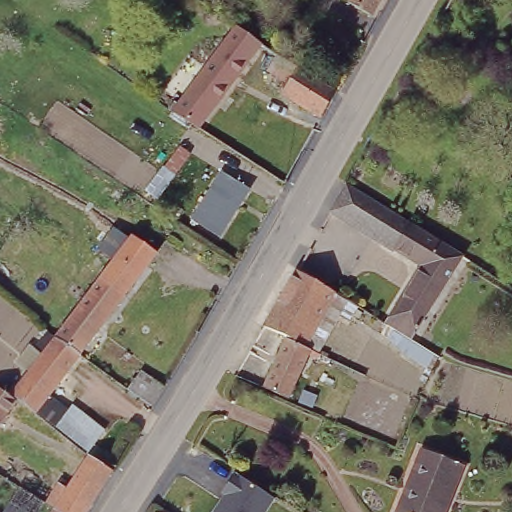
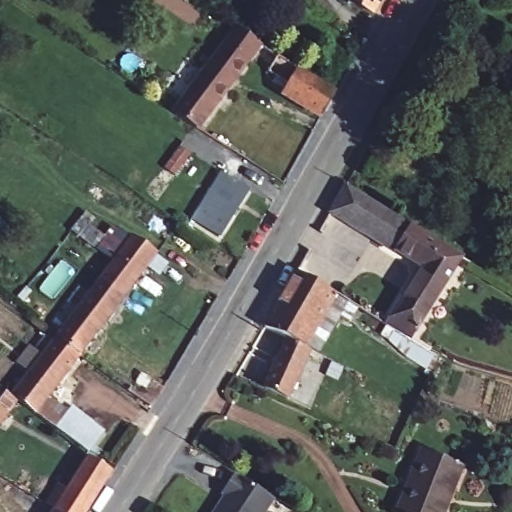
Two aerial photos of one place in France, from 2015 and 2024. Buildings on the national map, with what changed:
unchanged [(343,0),(388,0),(376,21),(343,0)]
unchanged [(175,109),(180,113),(240,32),(263,49),(200,136),(189,129),(170,115),(175,109)]
unchanged [(282,56),(336,93),(321,119),(284,92),(290,84),(271,71),(282,56)]
unchanged [(174,138),(183,143),(170,164),(161,159),(174,138)]
unchanged [(156,165),(164,170),(152,189),(145,184),(156,165)]
unchanged [(225,174),(251,191),(225,233),(199,215),(225,174)]
unchanged [(408,300),(424,273),(330,215),(346,188),(468,259),(434,315),(430,322),(420,338),(416,344),(391,329),(395,323),(408,300)]
unchanged [(108,232),(124,243),(90,289),(74,278),(108,232)]
unchanged [(20,348),(26,353),(40,336),(49,344),(90,289),(124,243),(146,259),(71,362),(40,403),(27,419),(12,407),(6,403),(25,378),(7,364),(20,348)]
unchanged [(315,363),(305,359),(288,398),(264,388),(285,338),(262,325),(296,268),(333,289),(345,297),(314,353),(318,354),(315,363)]
unchanged [(423,349),(446,362),(437,381),(413,367),(423,349)]
unchanged [(136,361),(160,379),(148,399),(124,381),(136,361)]
unchanged [(12,407),(0,423),(0,397),(6,403),(12,407)]
unchanged [(40,403),(65,421),(69,415),(96,434),(80,458),(27,419),(40,403)]
unchanged [(422,453),(462,468),(445,512),(400,512),(422,453)]
unchanged [(55,490),(63,496),(85,461),(106,476),(85,512),(42,512),(55,490)]
unchanged [(220,495),(235,473),(275,499),(266,512),(213,512),(223,497),(220,495)]
unchanged [(38,512),(6,512),(16,496),(40,510),(38,512)]

